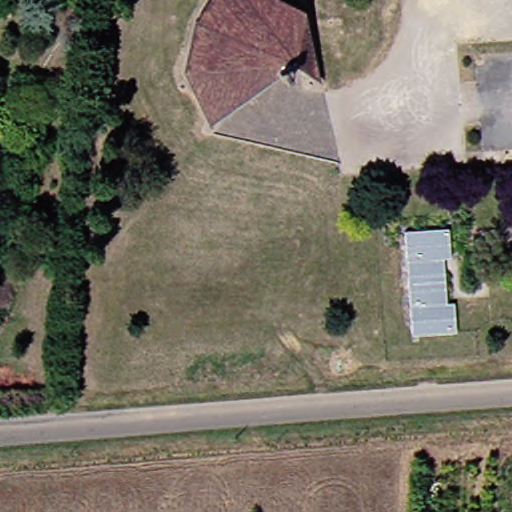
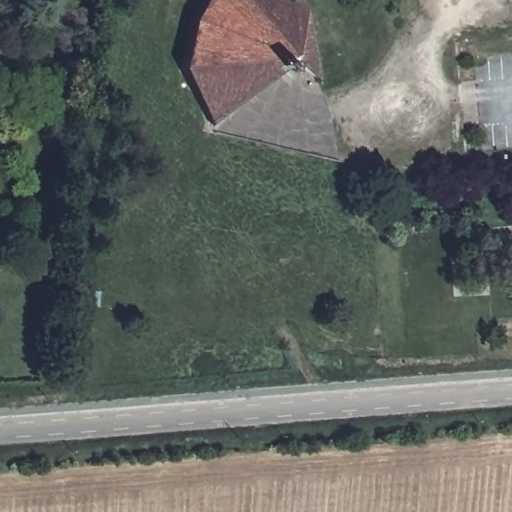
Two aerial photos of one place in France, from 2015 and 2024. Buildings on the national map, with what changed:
unchanged [(210,91),(206,79),(200,64),(190,66),(187,17),(198,20),(204,0),(277,0),(295,8),(316,79),(299,47),(295,65),(280,54),(224,90),(220,116),(220,119),(219,116),(210,91)]
unchanged [(286,64),(222,117),(220,119),(220,116),(224,90),(280,54),(295,65),(286,64)]
new [(411,335),(405,232),(449,229),(450,258),(443,258),(445,302),(454,302),(455,332),(411,335)]

